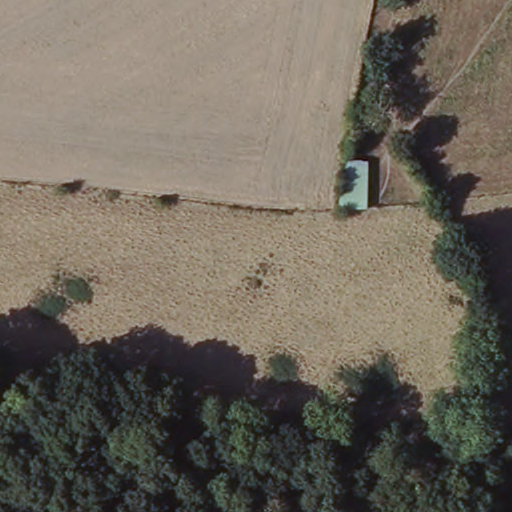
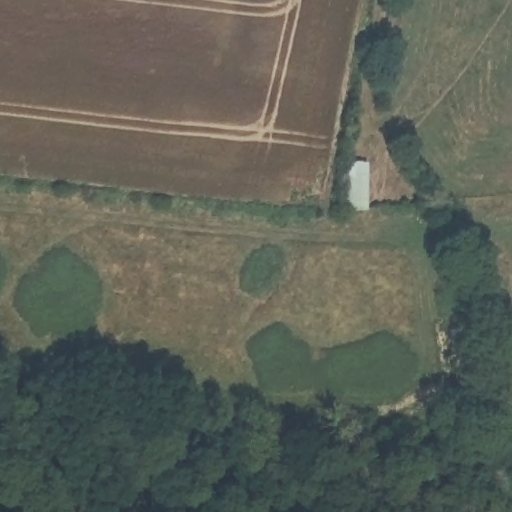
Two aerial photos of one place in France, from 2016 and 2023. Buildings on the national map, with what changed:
unchanged [(337,213),(347,162),(372,163),(368,214),(337,213)]

